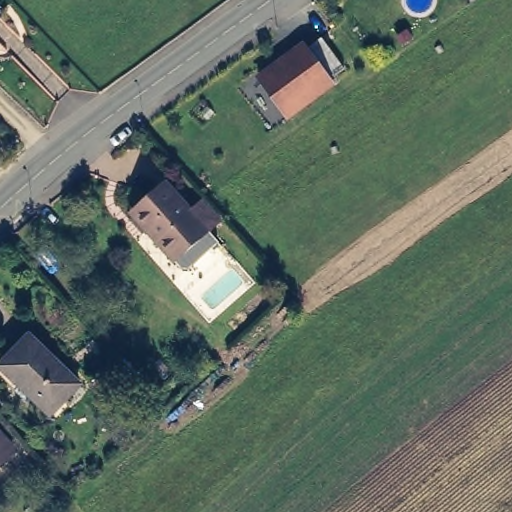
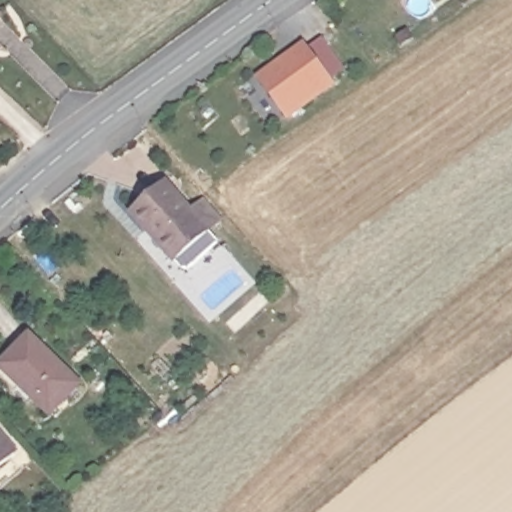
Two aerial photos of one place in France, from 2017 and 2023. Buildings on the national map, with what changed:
unchanged [(302,42),(307,47),(321,37),(343,70),(329,81),(335,87),(284,122),(255,77),(302,42)]
unchanged [(141,236),(126,217),(159,188),(182,215),(195,204),(214,225),(201,237),(168,266),(141,236)]
unchanged [(31,337),(83,384),(75,392),(53,414),(3,367),(28,340),(31,337)]
unchanged [(10,454),(0,463),(0,443),(10,454)]

